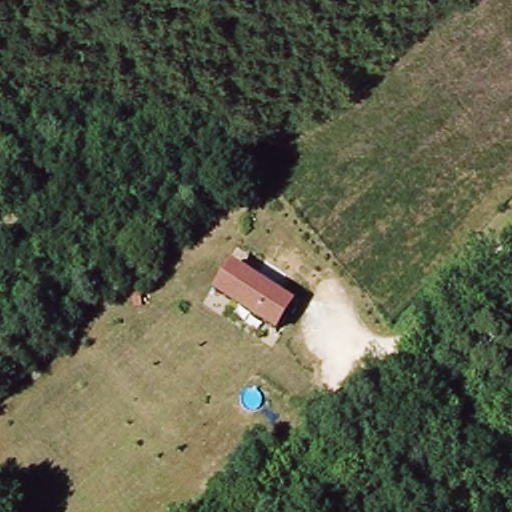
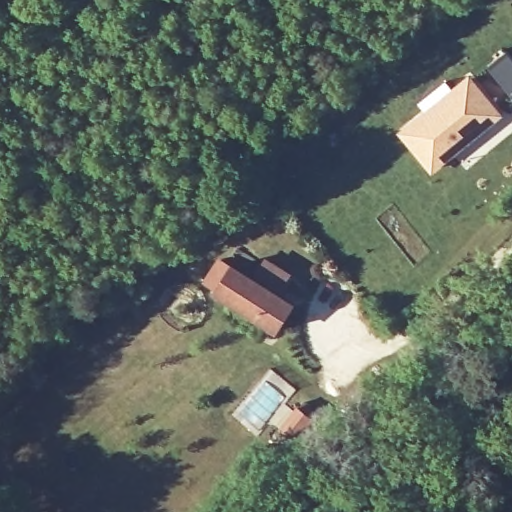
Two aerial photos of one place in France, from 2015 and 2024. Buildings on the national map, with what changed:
new [(399,133),(471,76),(504,116),(432,173),(399,133)]
unchanged [(297,302),(277,334),(212,292),(232,262),(297,302)]

